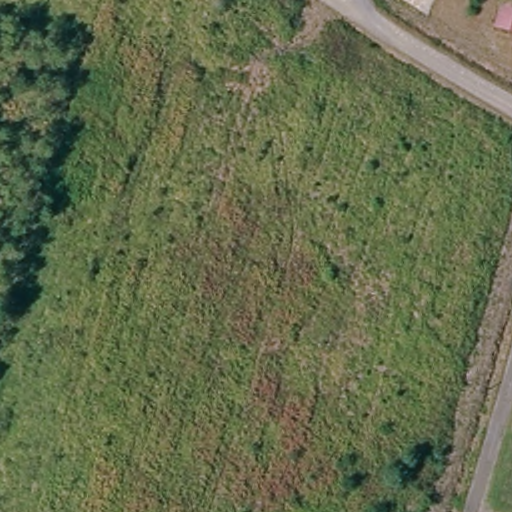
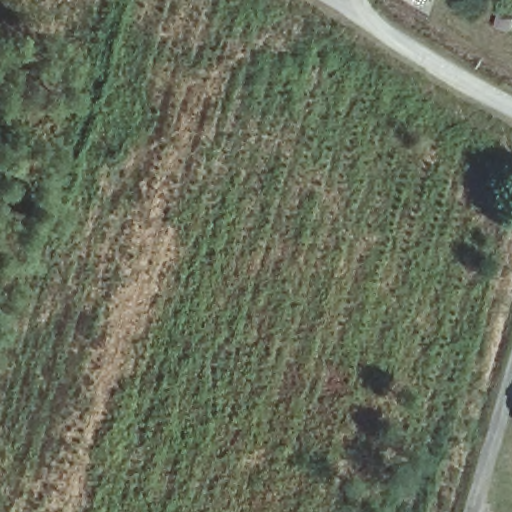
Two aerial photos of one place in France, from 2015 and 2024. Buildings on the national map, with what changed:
unchanged [(512,0),(512,31),(496,29),(503,0),(512,0)]

